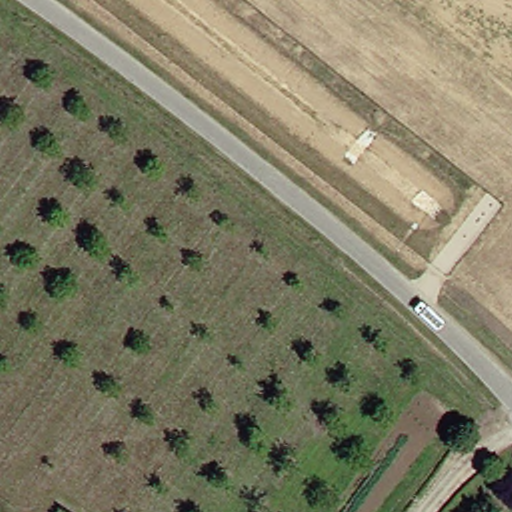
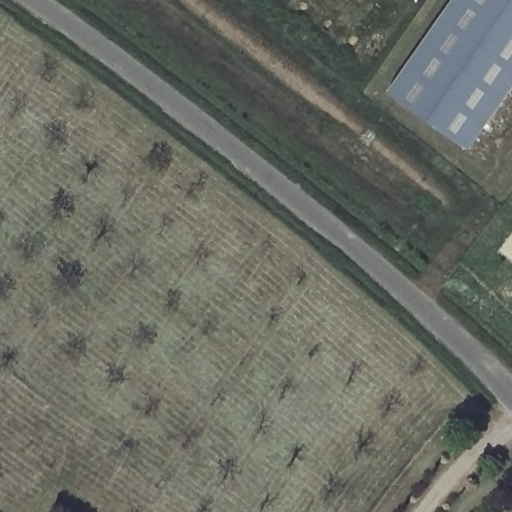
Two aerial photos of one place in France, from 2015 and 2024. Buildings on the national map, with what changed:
new [(387,89),(450,0),(512,0),(512,87),(470,147),(387,89)]

